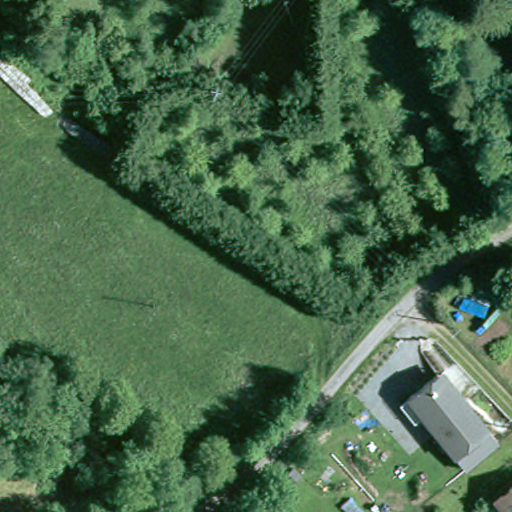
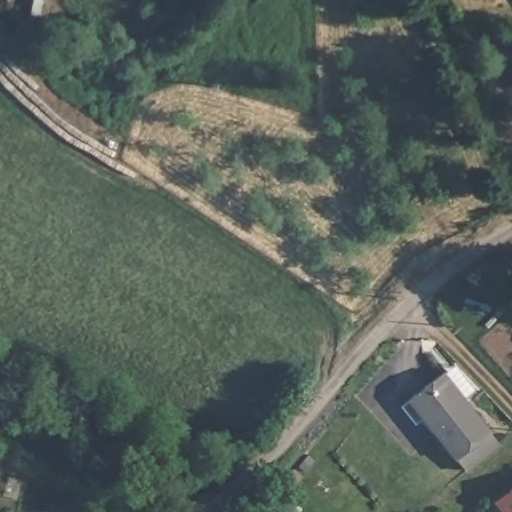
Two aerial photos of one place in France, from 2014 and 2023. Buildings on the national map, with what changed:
unchanged [(459,376),(475,399),(496,429),(466,449),(442,413),(434,418),(422,402),(430,396),(456,378),(459,376)]
unchanged [(494,495),(512,481),(512,512),(508,512),(494,495)]

